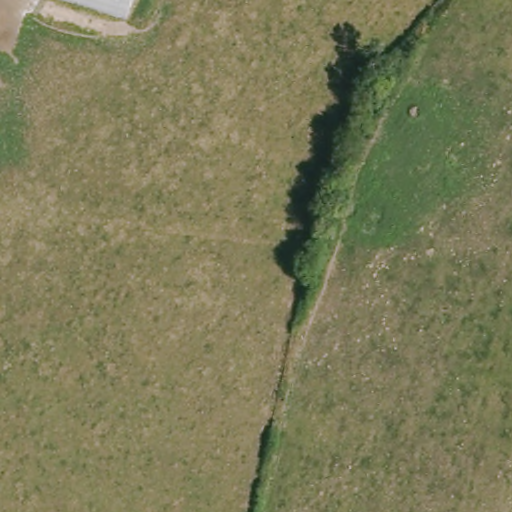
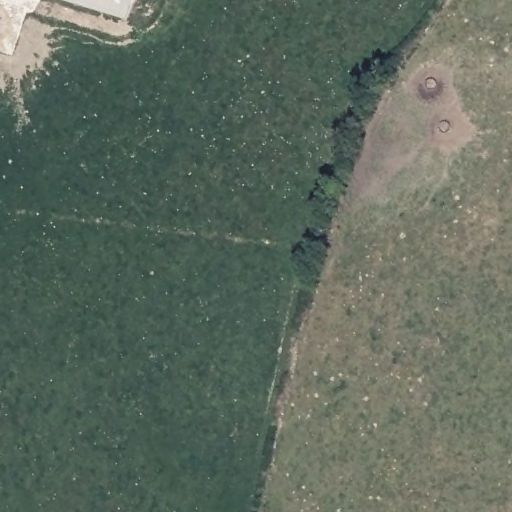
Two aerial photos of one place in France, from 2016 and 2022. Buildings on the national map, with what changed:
unchanged [(55,0),(130,0),(122,22),(55,0)]

